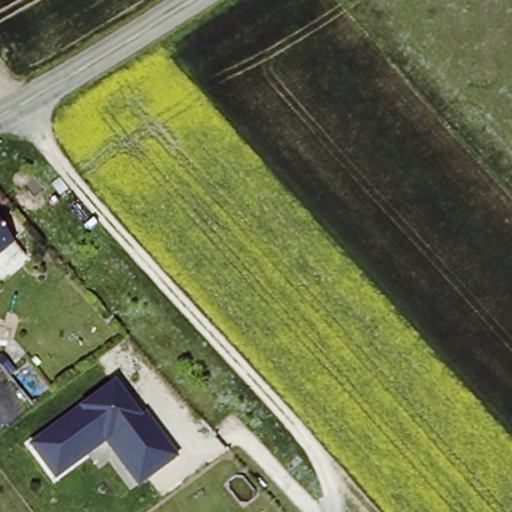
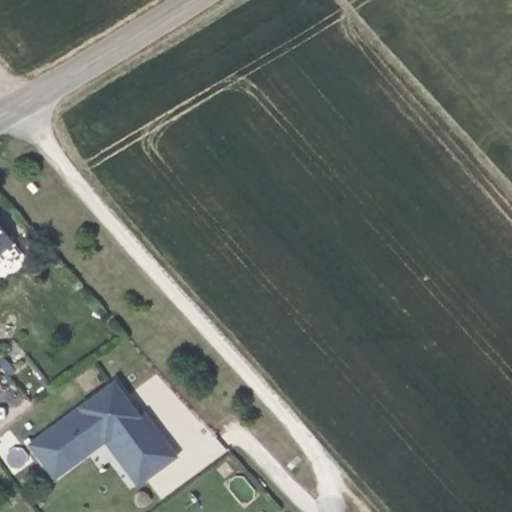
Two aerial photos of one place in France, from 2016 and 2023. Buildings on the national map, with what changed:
unchanged [(14,242),(0,253),(0,225),(14,242)]
unchanged [(141,411),(146,407),(180,455),(138,483),(104,439),(53,475),(28,441),(116,373),(141,411)]

